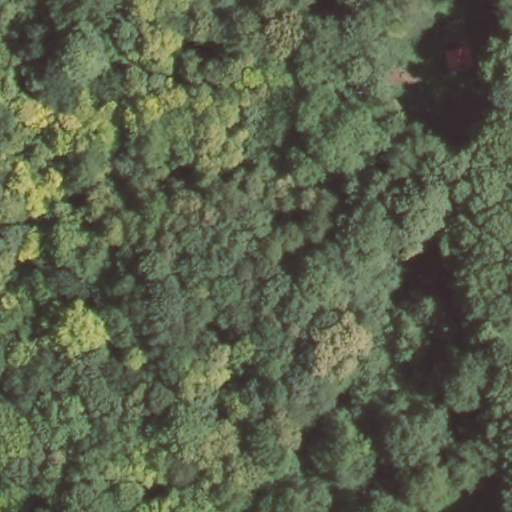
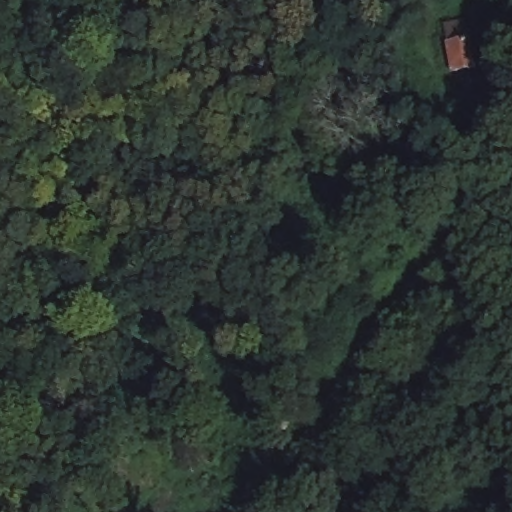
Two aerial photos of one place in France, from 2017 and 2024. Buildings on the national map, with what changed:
unchanged [(438,22),(445,48),(422,54),(416,27),(438,22)]

